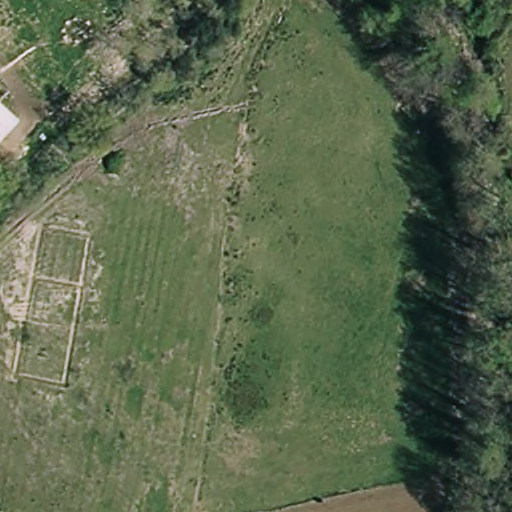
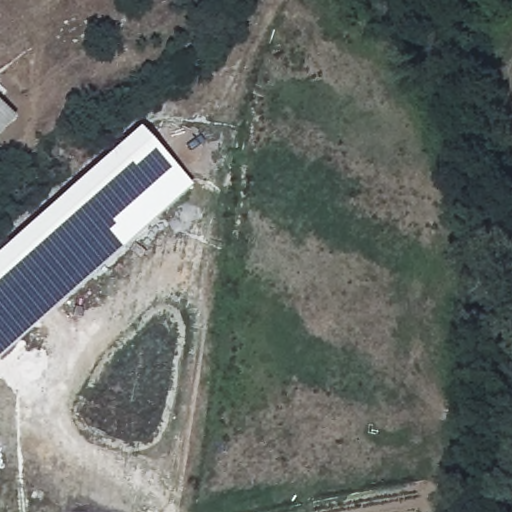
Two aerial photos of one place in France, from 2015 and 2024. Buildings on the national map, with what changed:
unchanged [(0,139),(0,103),(18,121),(0,139)]
new [(0,256),(143,129),(195,187),(0,361),(0,256)]

